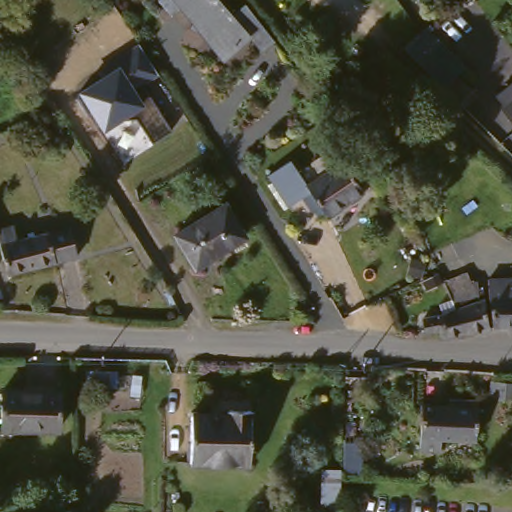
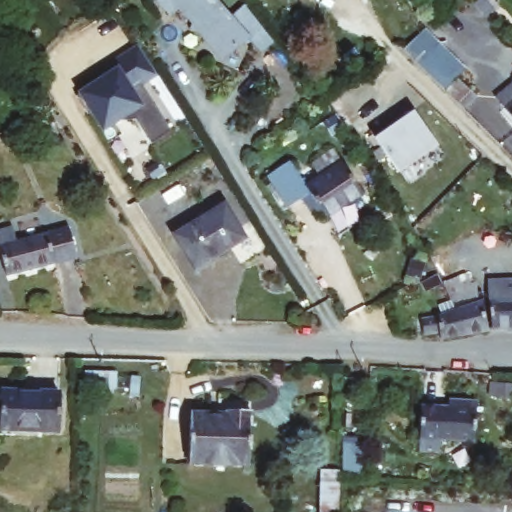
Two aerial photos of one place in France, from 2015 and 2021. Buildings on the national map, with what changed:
unchanged [(234,9),(269,46),(254,55),(243,46),(218,67),(173,17),(159,24),(146,7),(154,0),(207,0),(224,18),(234,9)]
unchanged [(406,49),(428,30),(474,77),(466,85),(477,99),(466,108),(406,49)]
unchanged [(123,118),(103,131),(77,90),(113,68),(108,60),(136,42),(159,76),(143,87),(172,132),(152,143),(136,118),(123,118)]
unchanged [(497,101),(512,89),(512,123),(497,101)]
new [(439,145),(400,174),(374,139),(413,111),(439,145)]
unchanged [(310,187),(325,176),(316,165),(332,154),(360,195),(329,218),(310,187)]
unchanged [(281,209),(262,182),(282,166),(298,194),(281,209)]
unchanged [(177,237),(223,204),(245,235),(228,249),(232,256),(205,280),(177,237)]
unchanged [(22,231),(62,221),(71,261),(9,282),(0,242),(0,222),(17,216),(22,231)]
unchanged [(448,270),(467,263),(471,283),(452,290),(448,270)]
unchanged [(429,324),(445,321),(450,320),(447,305),(449,303),(486,283),(492,334),(447,343),(432,345),(429,324)]
unchanged [(512,283),(512,330),(503,332),(498,285),(512,283)]
unchanged [(59,393),(58,430),(2,430),(3,389),(59,393)]
unchanged [(450,437),(449,450),(426,448),(431,405),(465,406),(464,398),(484,400),(479,440),(468,438),(450,437)]
unchanged [(187,459),(191,415),(229,417),(230,412),(252,413),(250,461),(187,459)]

